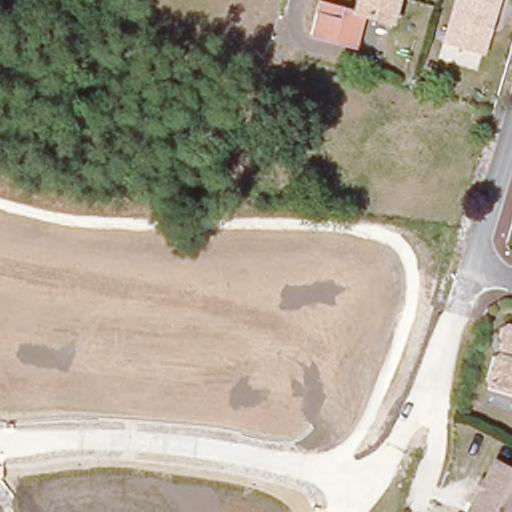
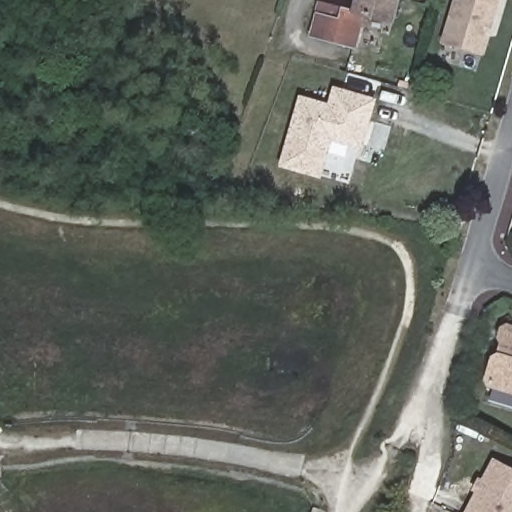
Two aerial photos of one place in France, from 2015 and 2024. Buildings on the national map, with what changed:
unchanged [(386,25),(360,18),(352,48),(306,36),(316,0),(393,0),(386,25)]
unchanged [(480,52),(441,41),(453,0),(495,0),(480,52)]
new [(298,96),(327,103),(332,86),(375,99),(361,150),(330,142),(320,179),(278,167),(298,96)]
unchanged [(498,330),(503,324),(512,326),(512,393),(488,386),(483,379),(490,358),(496,355),(499,343),(496,338),(498,330)]
unchanged [(512,471),(512,512),(461,512),(488,459),(512,471)]

